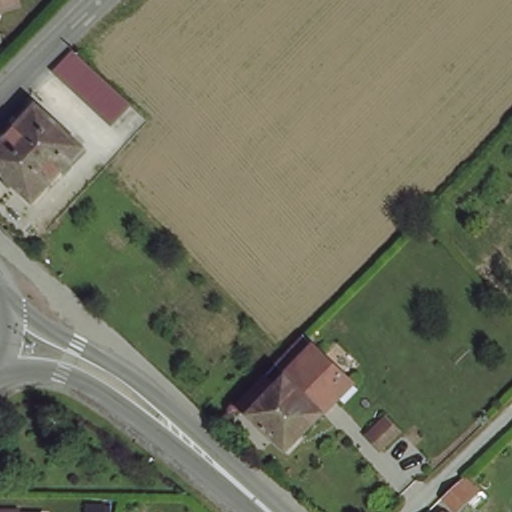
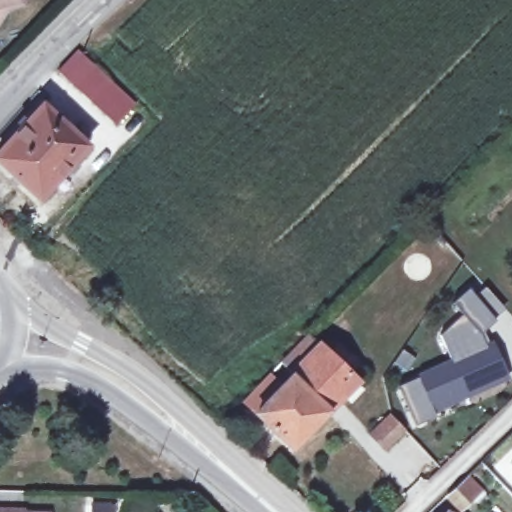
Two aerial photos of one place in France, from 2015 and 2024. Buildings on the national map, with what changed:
unchanged [(91,67),(137,108),(118,128),(56,74),(74,54),(91,67)]
unchanged [(87,151),(39,202),(0,167),(0,153),(44,109),(87,151)]
new [(400,385),(453,360),(440,333),(462,312),(452,300),(468,286),(495,317),(481,331),(487,345),(492,342),(505,369),(454,392),(457,397),(434,407),(438,415),(418,424),(400,385)]
unchanged [(263,418),(249,405),(274,379),(288,391),(300,378),(286,366),(299,352),(312,338),(325,351),(363,386),(299,453),(263,418)]
unchanged [(381,447),(362,430),(385,406),(403,423),(381,447)]
unchanged [(464,512),(454,500),(471,486),(483,499),(468,512),(464,512)]
unchanged [(20,512),(0,512),(0,511),(20,511),(20,512)]

